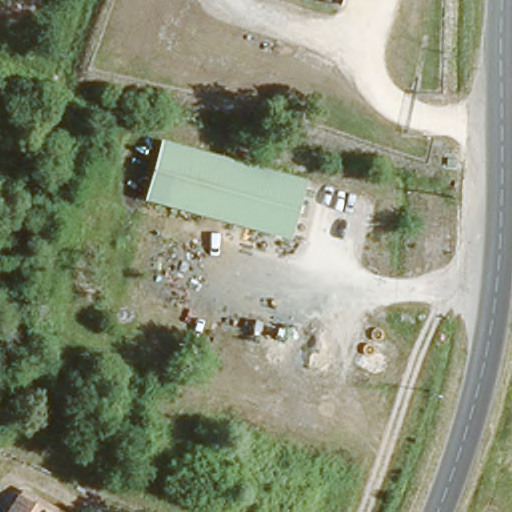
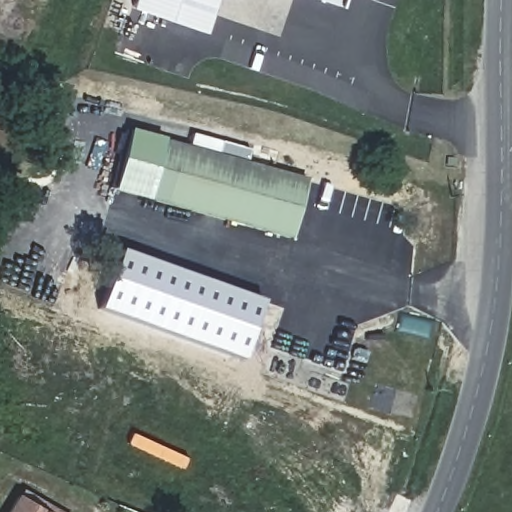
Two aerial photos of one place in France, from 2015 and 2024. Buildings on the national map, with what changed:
new [(129,5),(131,0),(215,0),(204,31),(129,5)]
unchanged [(303,0),(330,0),(326,9),(303,0)]
new [(129,130),(161,138),(161,140),(143,198),(142,200),(111,191),(129,130)]
unchanged [(305,178),(290,239),(143,198),(161,140),(305,178)]
new [(119,250),(262,301),(240,361),(97,309),(119,250)]
unchanged [(12,499),(36,512),(4,512),(12,499)]

